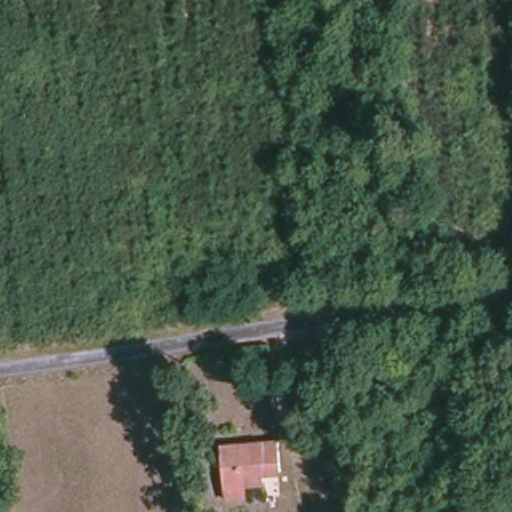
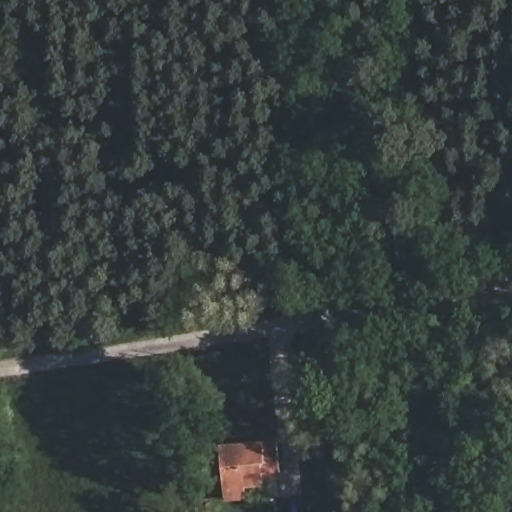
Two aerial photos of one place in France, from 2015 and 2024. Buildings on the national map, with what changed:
unchanged [(249,483),(247,501),(224,502),(220,445),(278,441),(282,478),(249,483)]

